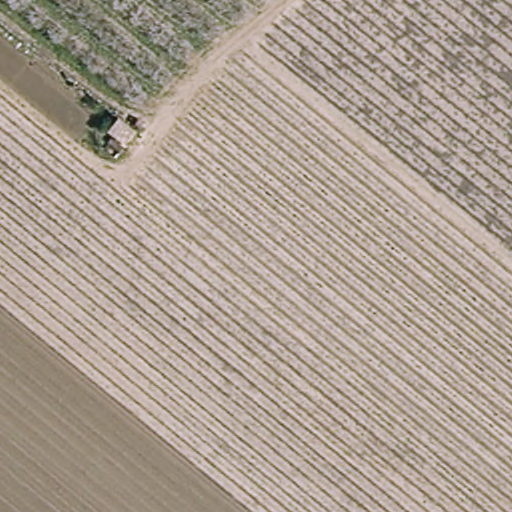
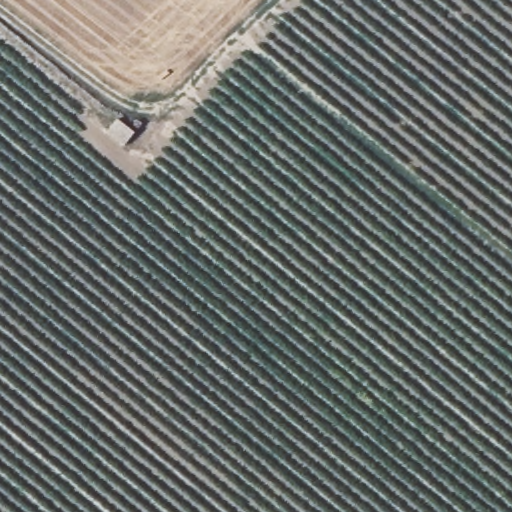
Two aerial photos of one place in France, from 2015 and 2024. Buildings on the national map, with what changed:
unchanged [(115,119),(133,132),(122,148),(103,135),(115,119)]

